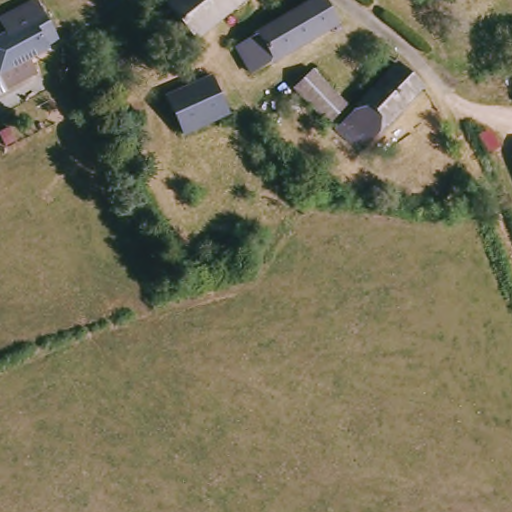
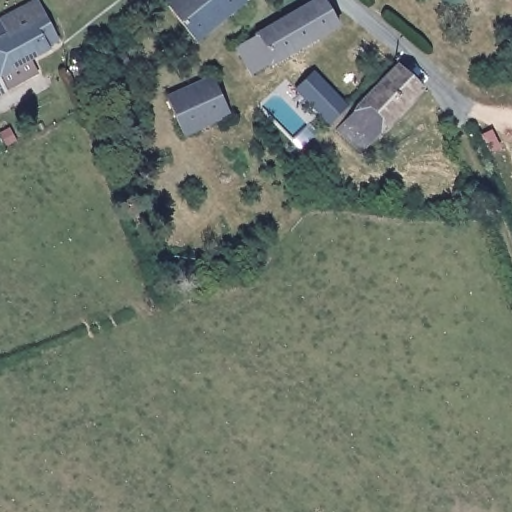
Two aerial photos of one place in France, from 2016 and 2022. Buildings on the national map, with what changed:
unchanged [(245,2),(191,40),(164,5),(171,0),(243,0),(245,2)]
unchanged [(322,0),(325,0),(338,23),(244,72),(233,48),(322,0)]
unchanged [(57,41),(48,45),(49,48),(30,58),(36,71),(0,90),(0,34),(8,29),(1,15),(35,2),(53,33),(57,41)]
unchanged [(397,65),(417,88),(359,137),(338,116),(397,65)]
unchanged [(310,68),(340,101),(322,119),(293,83),(310,68)]
unchanged [(211,73),(225,105),(178,124),(166,91),(211,73)]

